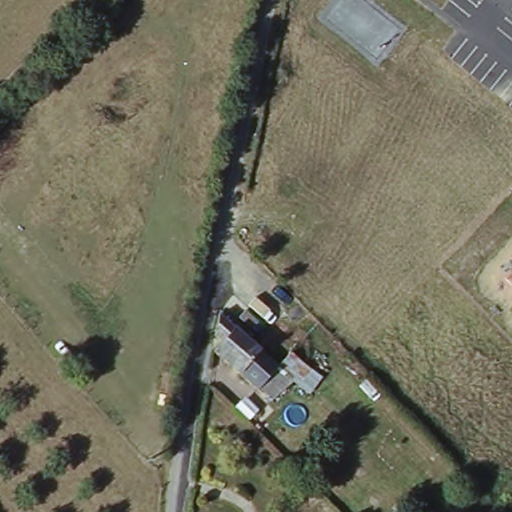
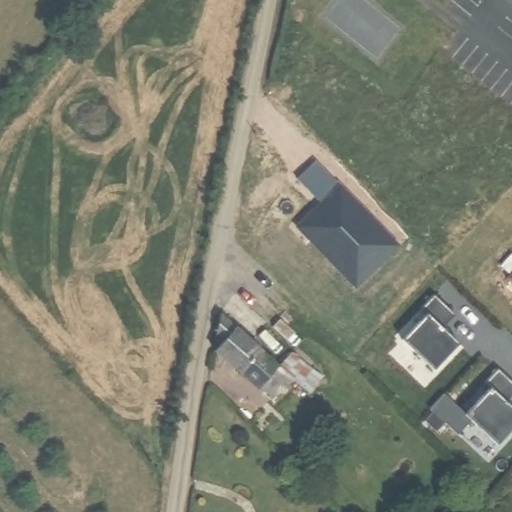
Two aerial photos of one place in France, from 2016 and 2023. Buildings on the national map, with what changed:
new [(323,204),(298,179),(317,160),(361,205),(369,214),(400,246),(357,287),(311,240),(299,227),(307,219),(323,204)]
unchanged [(505,280),(512,273),(512,287),(505,280)]
new [(434,370),(403,339),(427,315),(422,310),(435,296),(453,315),(441,328),(457,344),(434,370)]
unchanged [(255,391),(255,392),(213,353),(222,345),(216,340),(221,318),(265,362),(274,371),(289,357),(312,380),(299,393),(285,381),(267,402),(255,391)]
new [(304,342),(327,361),(323,365),(328,368),(311,393),(304,388),(312,380),(289,357),(304,342)]
new [(512,384),(512,395),(505,403),(512,409),(512,428),(497,445),(464,415),(489,387),(485,383),(498,370),(512,384)]

